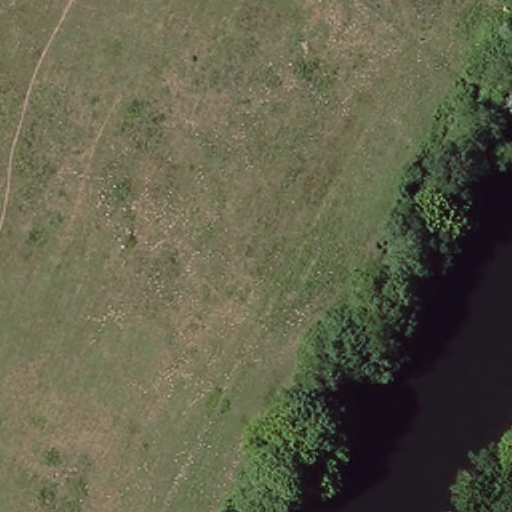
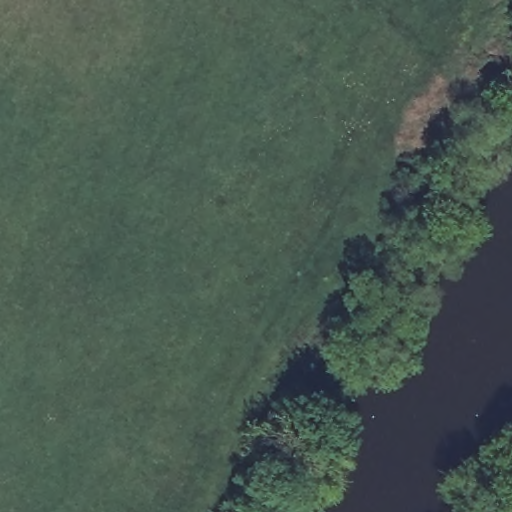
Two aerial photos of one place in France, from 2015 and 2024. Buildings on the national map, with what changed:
[]

